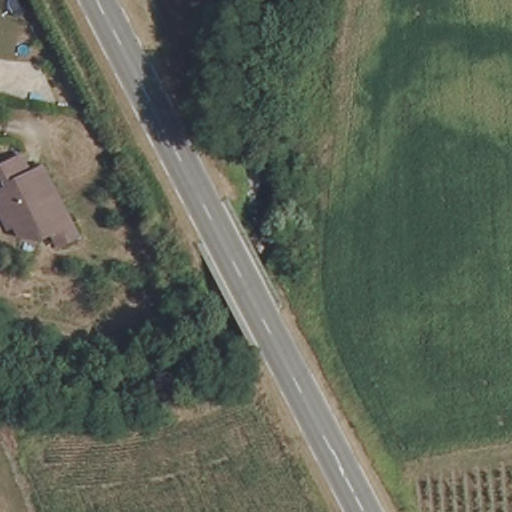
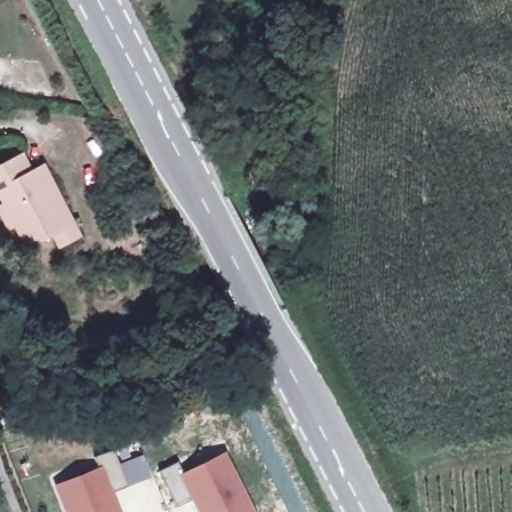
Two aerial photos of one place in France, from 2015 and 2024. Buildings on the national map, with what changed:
unchanged [(57,237),(44,244),(24,240),(17,229),(11,232),(2,213),(7,210),(0,198),(0,173),(25,160),(34,178),(47,171),(75,228),(81,238),(62,248),(57,237)]
new [(54,486),(99,466),(96,458),(112,450),(128,485),(112,492),(121,512),(64,512),(54,486)]
new [(177,462),(182,473),(226,451),(255,512),(198,512),(191,498),(177,506),(160,471),(177,462)]

